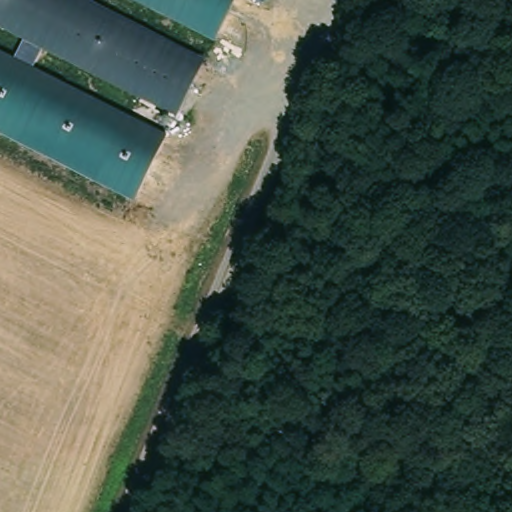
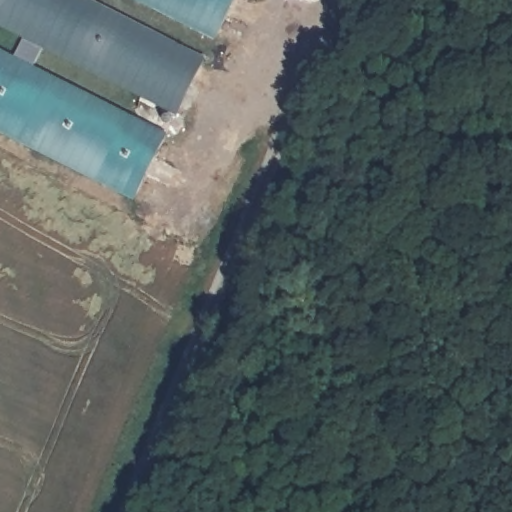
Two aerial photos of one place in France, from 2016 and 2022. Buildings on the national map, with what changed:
unchanged [(204,58),(176,116),(0,28),(0,0),(88,0),(204,58)]
unchanged [(133,0),(232,0),(212,39),(133,0)]
unchanged [(164,135),(132,196),(0,130),(0,52),(164,135)]

